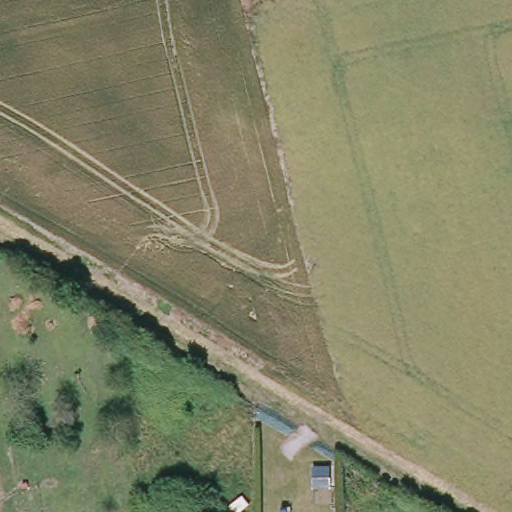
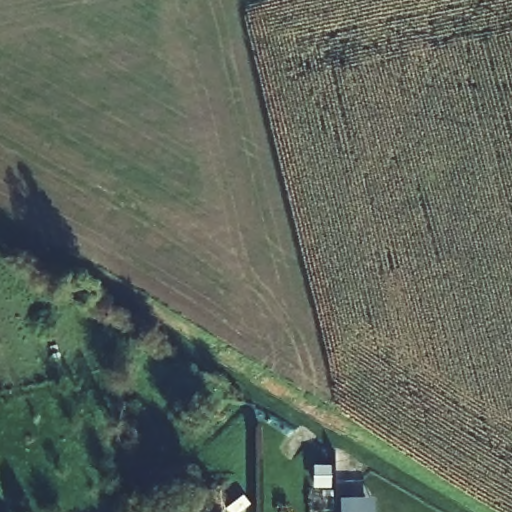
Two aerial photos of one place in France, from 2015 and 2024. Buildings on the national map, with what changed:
new [(375,498),(375,512),(340,512),(340,499),(375,498)]

